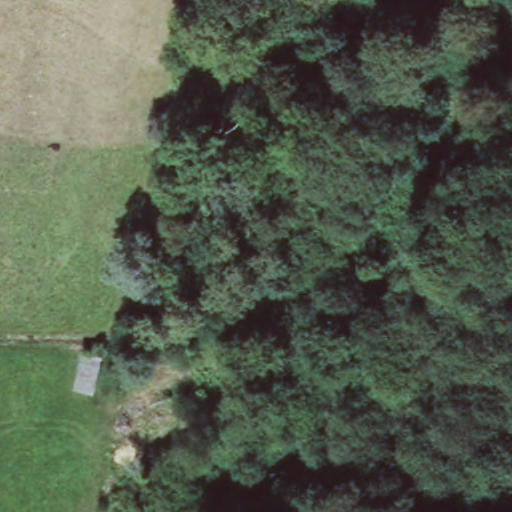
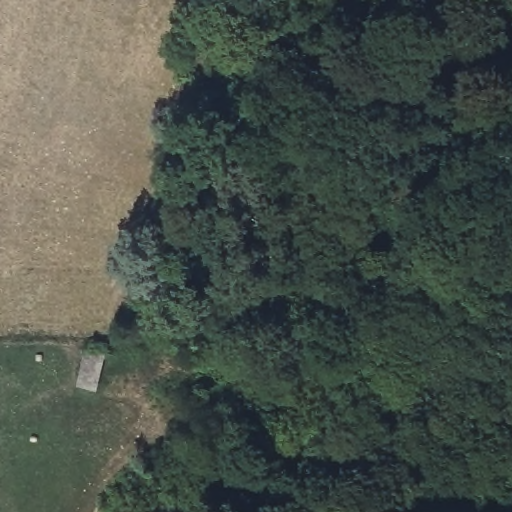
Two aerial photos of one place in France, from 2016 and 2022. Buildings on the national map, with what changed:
unchanged [(107,350),(97,386),(79,381),(87,344),(107,350)]

